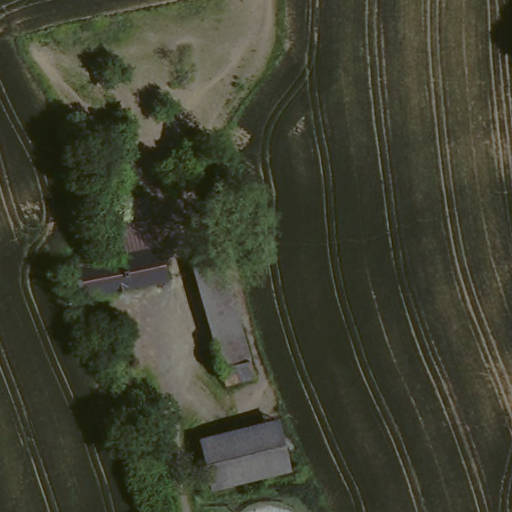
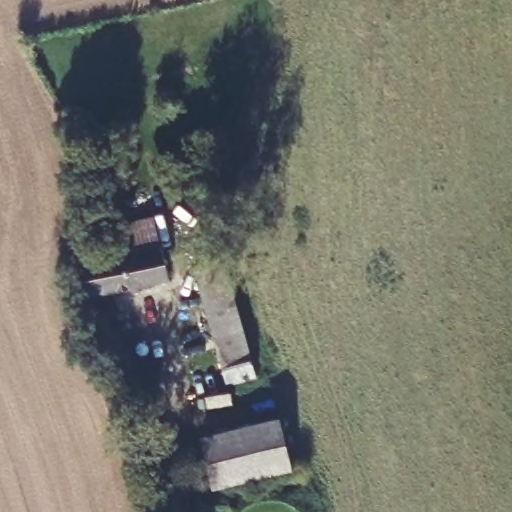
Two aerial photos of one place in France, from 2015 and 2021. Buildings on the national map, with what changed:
unchanged [(123,250),(109,201),(150,191),(163,238),(123,250)]
unchanged [(173,273),(91,296),(80,263),(123,250),(163,238),(173,273)]
unchanged [(205,265),(206,263),(202,248),(223,244),(225,255),(235,254),(265,377),(236,384),(205,265)]
unchanged [(206,434),(281,415),(294,468),(219,485),(206,434)]

